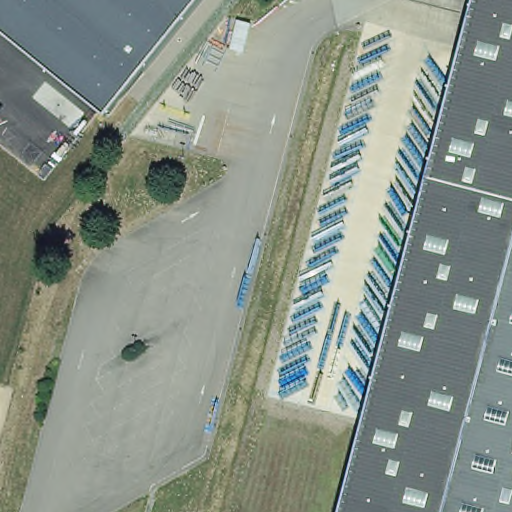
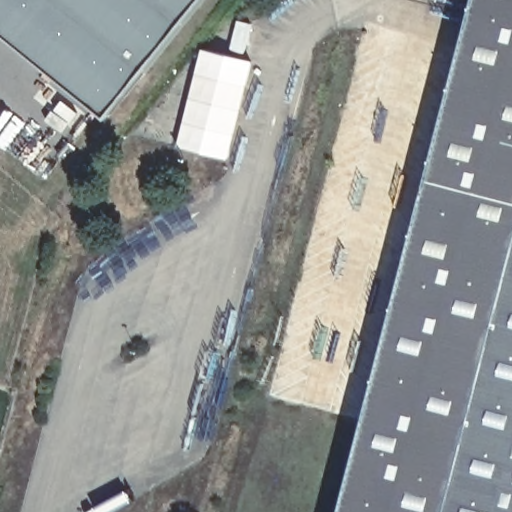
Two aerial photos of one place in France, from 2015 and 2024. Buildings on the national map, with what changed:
unchanged [(0,32),(0,0),(204,0),(108,119),(0,32)]
unchanged [(343,438),(451,0),(512,0),(512,512),(325,512),(343,438)]
new [(256,62),(231,164),(177,150),(200,52),(256,62)]

